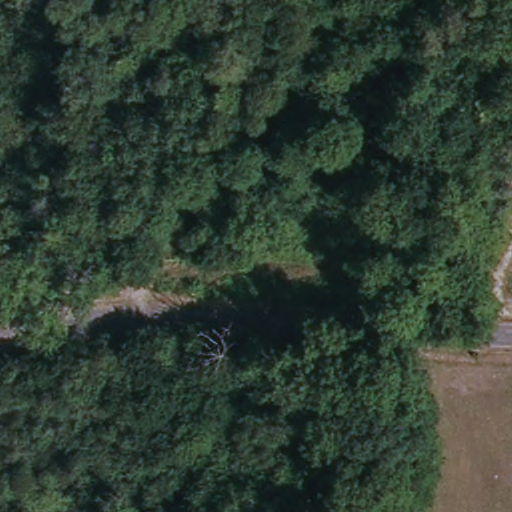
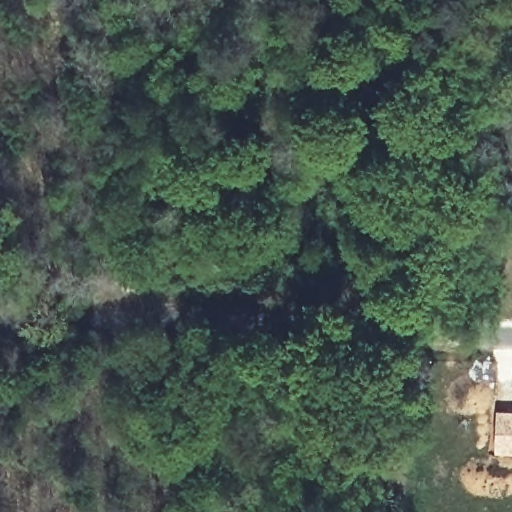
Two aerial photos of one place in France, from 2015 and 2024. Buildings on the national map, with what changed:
new [(495,409),(512,410),(512,455),(493,454),(495,409)]

